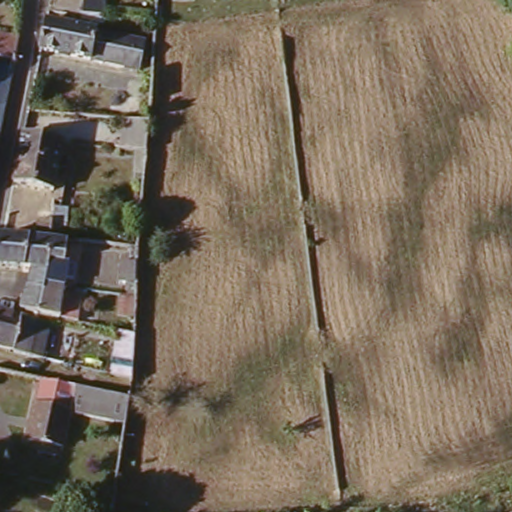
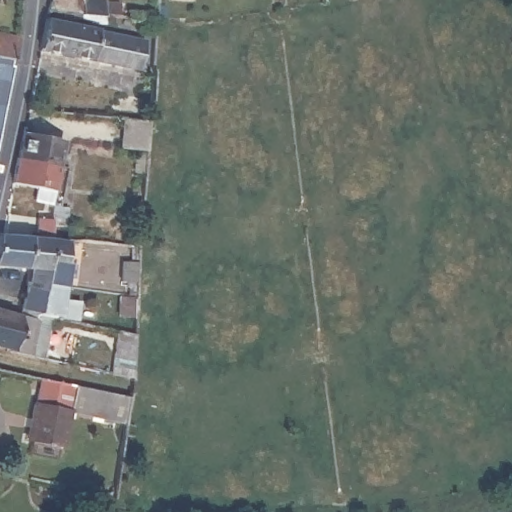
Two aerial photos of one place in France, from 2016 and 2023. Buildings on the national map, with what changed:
unchanged [(109,7),(88,6),(53,0),(109,0),(109,7)]
unchanged [(45,34),(50,10),(150,31),(144,60),(43,40),(45,34)]
unchanged [(0,48),(0,22),(24,26),(20,51),(0,48)]
unchanged [(16,59),(0,140),(0,56),(16,59)]
unchanged [(124,139),(127,109),(153,111),(150,141),(124,139)]
unchanged [(25,134),(27,123),(67,130),(61,157),(56,181),(17,173),(22,149),(25,134)]
unchanged [(42,227),(44,209),(57,210),(55,229),(72,230),(70,252),(83,254),(81,270),(73,269),(71,277),(69,277),(49,275),(48,281),(30,276),(35,258),(28,258),(35,227),(42,227)]
unchanged [(1,224),(7,225),(35,227),(28,258),(0,257),(0,232),(1,224)]
unchanged [(141,272),(124,272),(126,252),(142,253),(141,272)]
unchanged [(39,303),(25,300),(30,276),(48,281),(49,275),(69,277),(65,309),(55,307),(39,303)]
unchanged [(123,306),(124,287),(141,287),(140,307),(123,306)]
unchanged [(17,341),(17,338),(0,333),(0,300),(37,309),(39,303),(55,307),(47,348),(17,341)]
unchanged [(114,364),(122,321),(139,325),(137,370),(114,364)]
unchanged [(75,402),(67,436),(31,428),(39,392),(40,392),(45,367),(135,386),(130,414),(75,402)]

